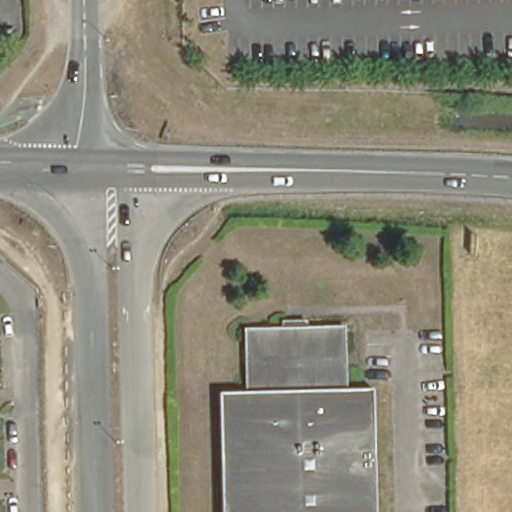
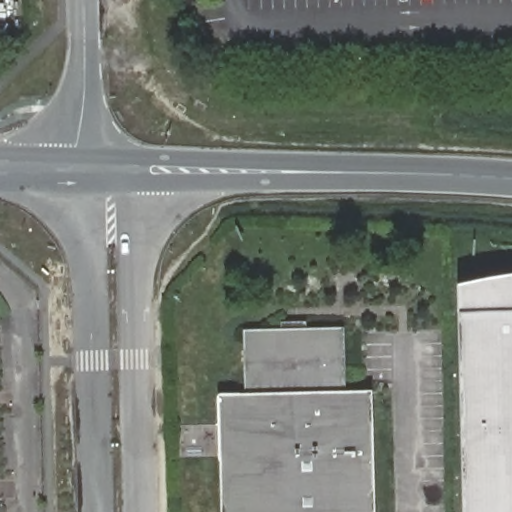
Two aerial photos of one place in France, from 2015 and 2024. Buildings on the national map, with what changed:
new [(512,512),(463,512),(457,283),(512,274),(512,512)]
unchanged [(214,388),(244,387),(243,328),(335,326),(337,385),(368,384),(371,512),(217,512),(214,388)]
unchanged [(3,512),(0,512),(0,383),(3,512)]

